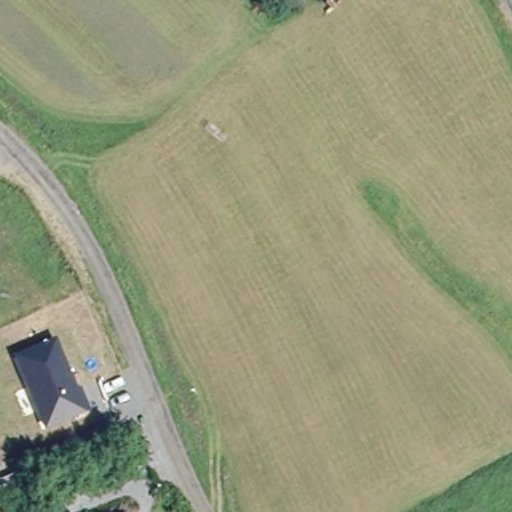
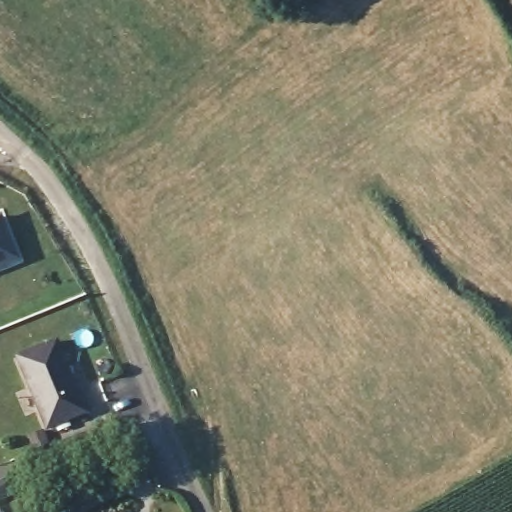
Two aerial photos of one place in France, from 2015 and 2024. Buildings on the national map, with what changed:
new [(23,258),(0,266),(0,218),(6,215),(23,258)]
unchanged [(56,339),(78,392),(81,390),(91,412),(46,431),(14,358),(56,339)]
unchanged [(123,512),(88,512),(88,509),(121,504),(123,512)]

